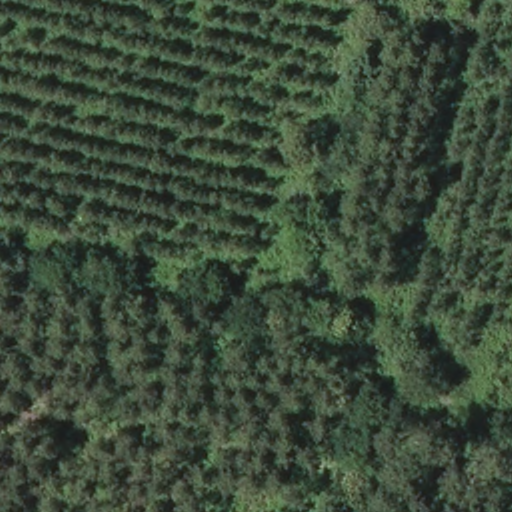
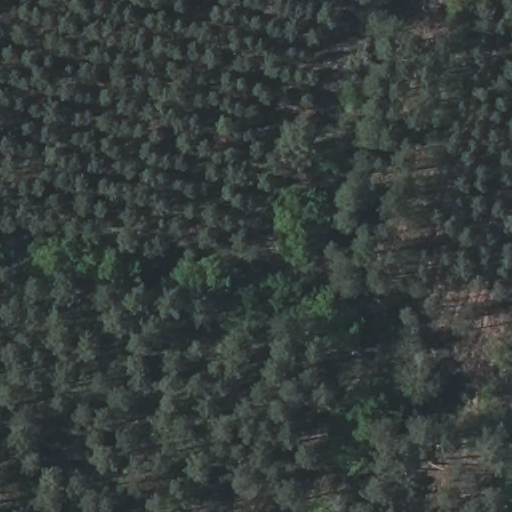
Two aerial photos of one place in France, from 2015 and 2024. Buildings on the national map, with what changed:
[]

